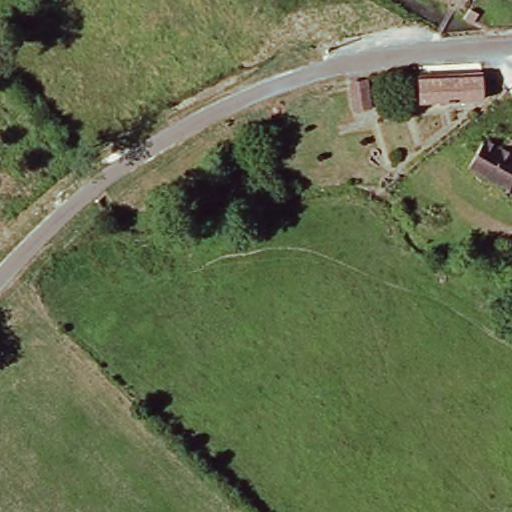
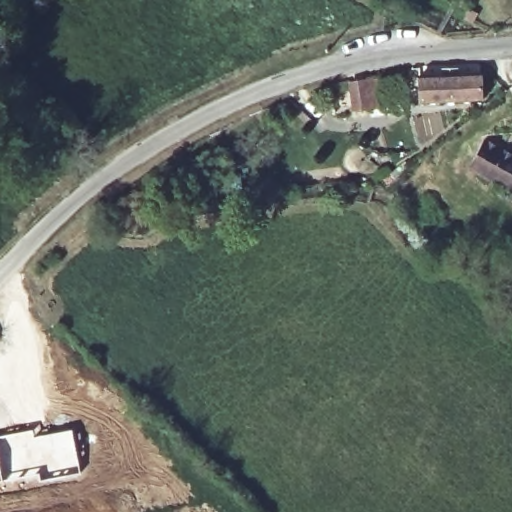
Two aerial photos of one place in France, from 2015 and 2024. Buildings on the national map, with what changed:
unchanged [(453,21),(459,13),(465,17),(460,25),(453,21)]
unchanged [(467,39),(458,34),(463,26),(471,32),(467,39)]
unchanged [(432,96),(423,96),(422,83),(482,78),(485,102),(434,106),(432,96)]
unchanged [(353,99),(367,98),(369,124),(355,125),(353,99)]
unchanged [(512,202),(467,175),(485,145),(512,162),(512,202)]
new [(33,428),(35,436),(72,428),(79,468),(48,475),(47,467),(30,471),(30,474),(1,482),(0,481),(0,435),(33,428)]

